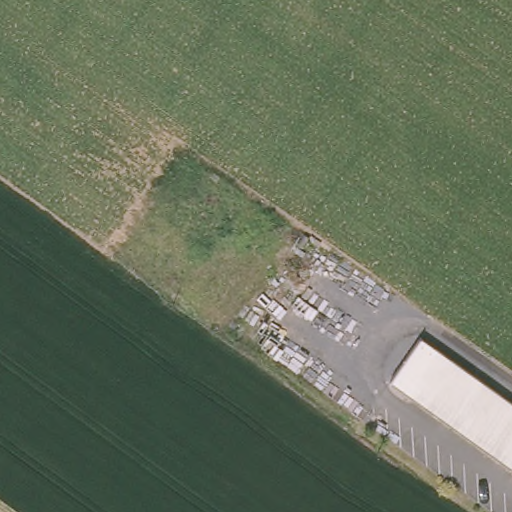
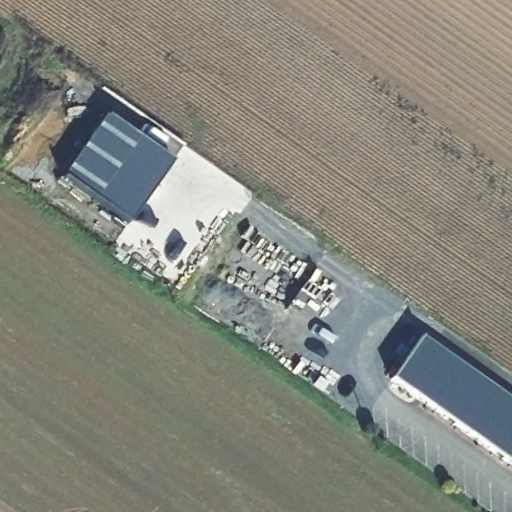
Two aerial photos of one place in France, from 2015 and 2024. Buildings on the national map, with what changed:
new [(127,221),(62,180),(104,113),(169,156),(127,221)]
unchanged [(512,401),(512,465),(382,371),(412,329),(512,401)]

